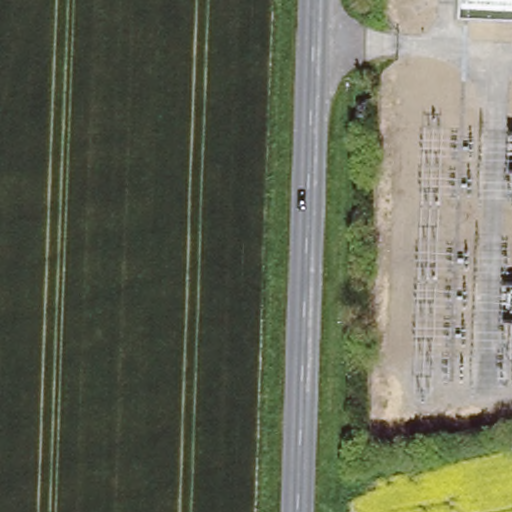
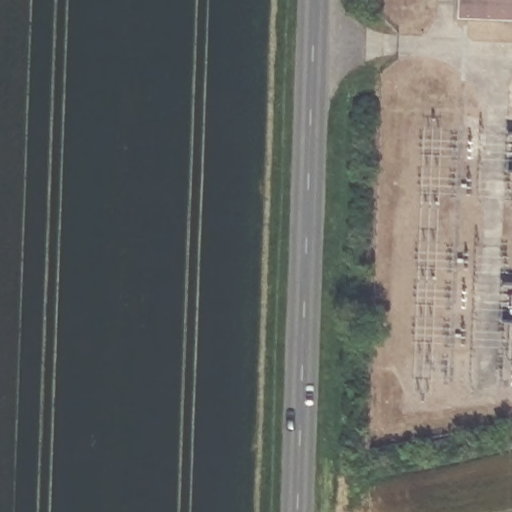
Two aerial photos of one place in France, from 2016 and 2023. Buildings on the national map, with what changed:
unchanged [(459,12),(459,0),(512,0),(512,15),(459,12)]

